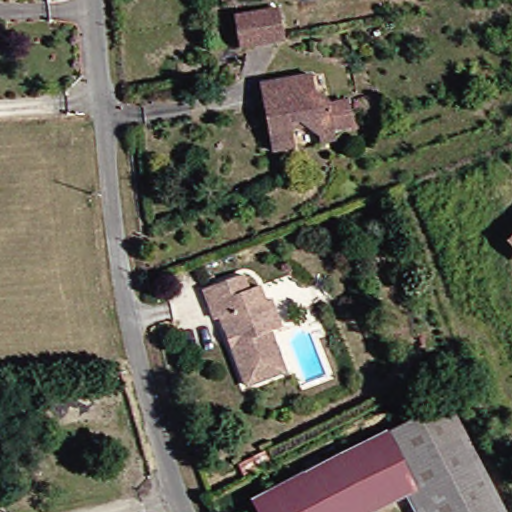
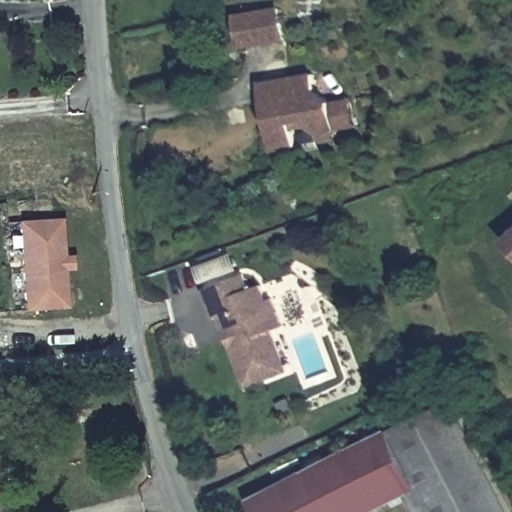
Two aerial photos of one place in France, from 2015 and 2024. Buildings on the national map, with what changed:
unchanged [(282,10),(287,41),(246,47),(241,16),(282,10)]
unchanged [(325,137),(323,130),(305,118),(293,121),(297,142),(277,145),(265,80),(314,72),(317,86),(331,99),(350,95),(351,95),(356,124),(338,127),(336,127),(338,136),(325,137)]
new [(68,256),(77,256),(78,270),(69,270),(72,307),(29,310),(23,222),(66,219),(68,256)]
unchanged [(232,327),(229,317),(229,315),(223,317),(220,307),(217,297),(215,291),(213,286),(224,282),(235,279),(246,276),(251,274),(252,273),(256,286),(257,289),(266,286),(268,285),(269,288),(272,298),(273,301),(279,300),(288,329),(277,333),(284,354),(290,374),(289,374),(278,378),(267,381),(256,385),(251,386),(248,376),(244,365),(241,354),(239,349),(238,346),(233,330),(232,327)]
unchanged [(409,467),(407,462),(404,457),(397,441),(394,436),(393,434),(392,433),(453,403),(509,512),(422,512),(413,494),(418,492),(421,490),(409,467)]
unchanged [(398,502),(393,505),(379,512),(262,512),(261,510),(258,505),(256,501),(260,500),(265,497),(270,495),(280,490),(285,487),(295,482),(315,472),(320,469),(330,464),(360,449),(376,442),(392,433),(393,434),(394,436),(397,441),(404,457),(407,462),(409,467),(421,490),(418,492),(413,494),(398,502)]

